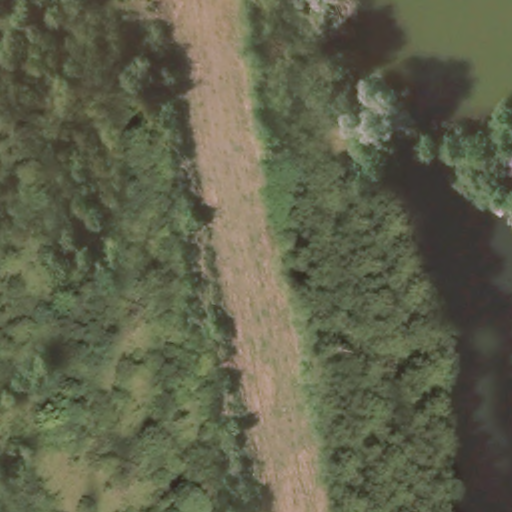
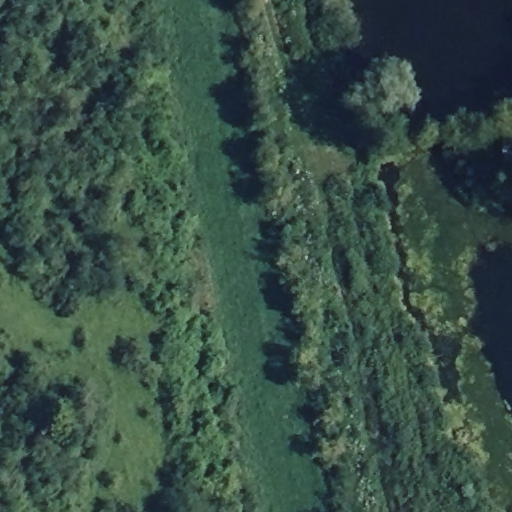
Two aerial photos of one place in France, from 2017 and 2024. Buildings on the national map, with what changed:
unchanged [(512,148),(512,172),(505,173),(504,148),(512,148)]

